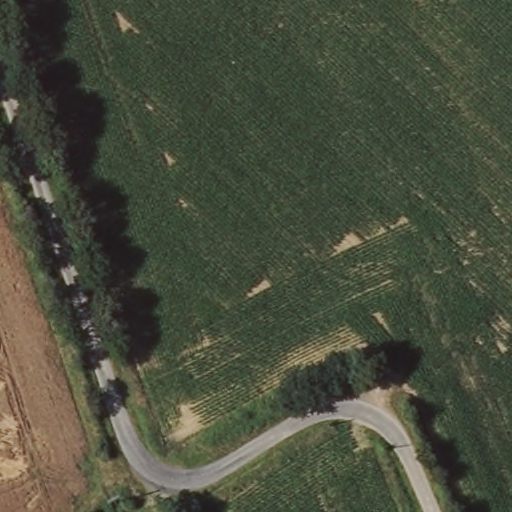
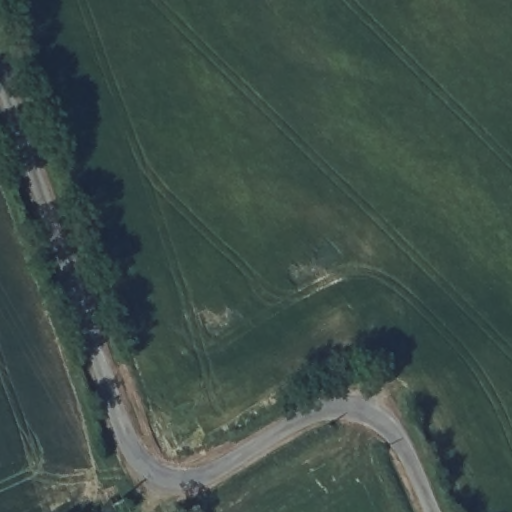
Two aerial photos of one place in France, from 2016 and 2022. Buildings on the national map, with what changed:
unchanged [(118,501),(102,507),(97,490),(112,485),(118,501)]

